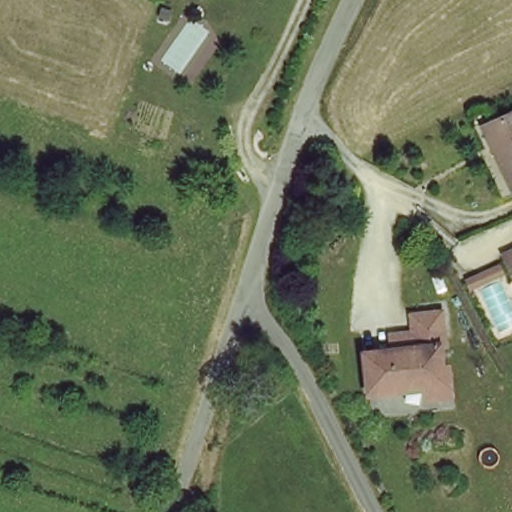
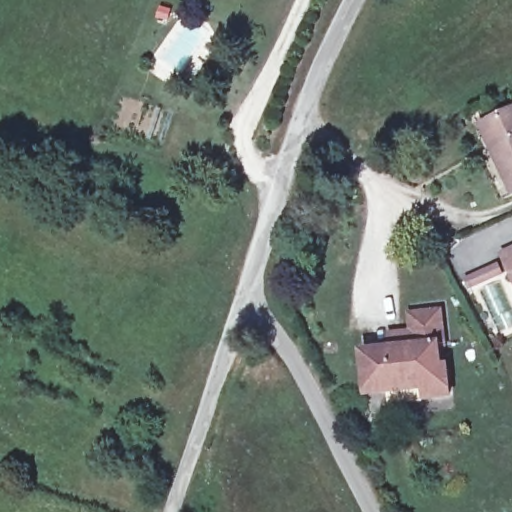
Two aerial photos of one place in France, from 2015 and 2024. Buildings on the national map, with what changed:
unchanged [(494,148),(485,126),(494,122),(512,114),(512,194),(494,148)]
unchanged [(512,247),(512,280),(501,251),(512,247)]
unchanged [(363,375),(361,359),(393,357),(392,349),(391,341),(402,340),(413,340),(412,321),(440,320),(448,402),(426,403),(425,391),(381,395),(365,397),(363,375)]

